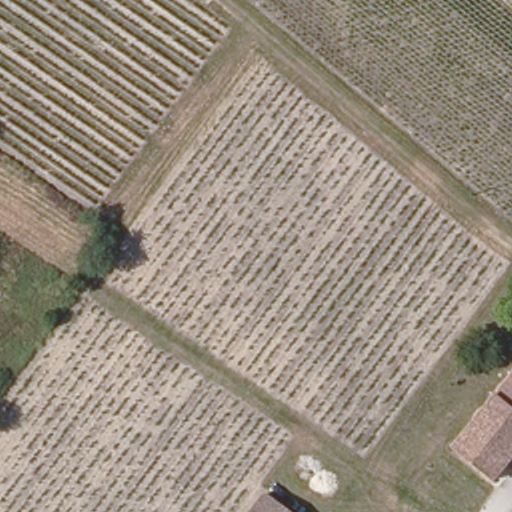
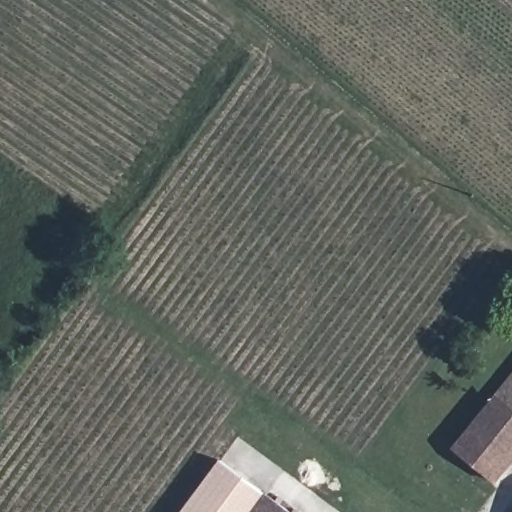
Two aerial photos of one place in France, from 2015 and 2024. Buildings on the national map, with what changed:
unchanged [(490,408),(512,382),(512,425),(490,408)]
unchanged [(491,476),(456,450),(490,408),(512,425),(512,450),(491,476)]
new [(187,503),(226,451),(308,512),(199,512),(187,503)]
demolished [(263,492),(290,512),(249,512),(263,492)]
new [(187,503),(199,512),(179,512),(187,503)]

